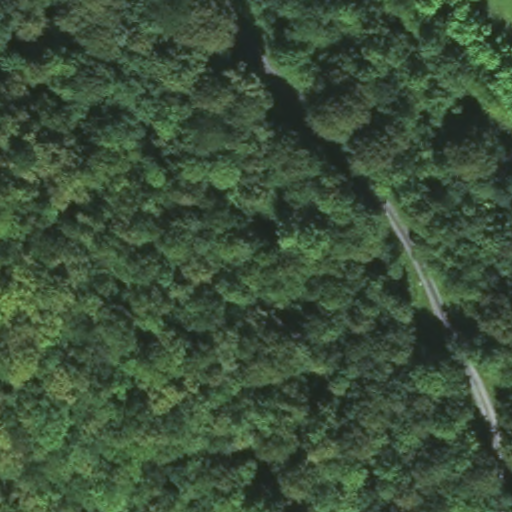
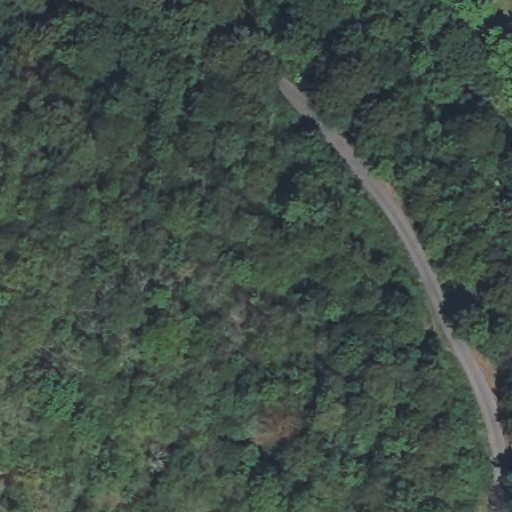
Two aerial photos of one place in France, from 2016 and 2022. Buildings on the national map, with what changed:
unchanged [(497,372),(503,391),(492,399),(485,381),(497,372)]

